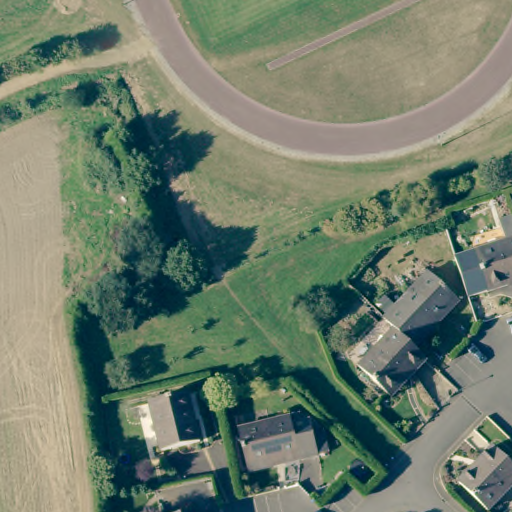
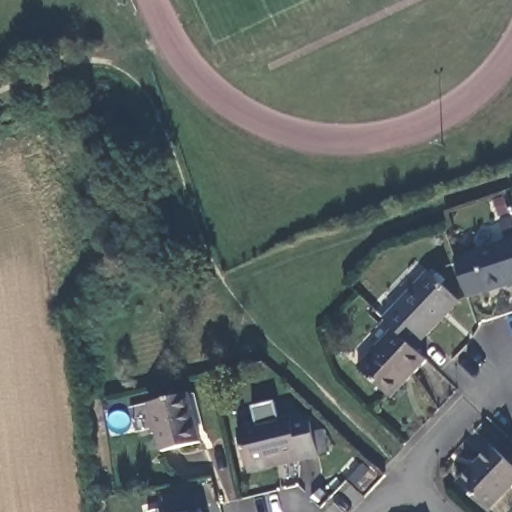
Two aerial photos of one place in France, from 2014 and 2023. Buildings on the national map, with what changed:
unchanged [(492,292),(479,252),(511,241),(505,222),(512,220),(512,286),(492,292)]
unchanged [(399,330),(388,319),(433,272),(464,301),(419,348),(399,330)]
unchanged [(418,375),(415,371),(392,395),(363,367),(399,330),(419,348),(432,360),(418,375)]
unchanged [(188,394),(200,442),(161,451),(150,403),(188,394)]
unchanged [(305,414),(307,422),(315,420),(323,455),(306,460),(289,463),(288,459),(252,467),(243,429),(305,414)]
unchanged [(512,461),(512,492),(493,512),(463,483),(497,447),(512,461)]
unchanged [(201,510),(202,512),(195,512),(201,510)]

